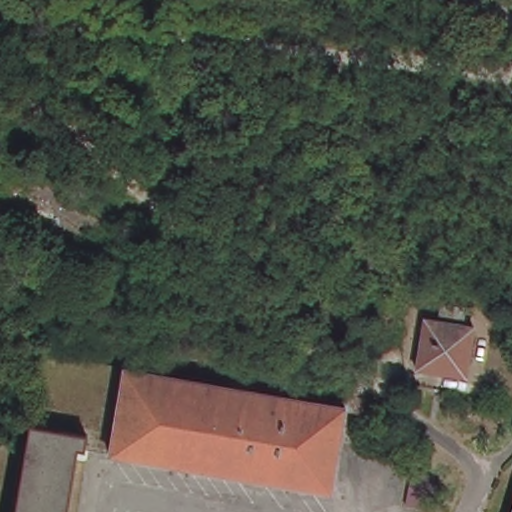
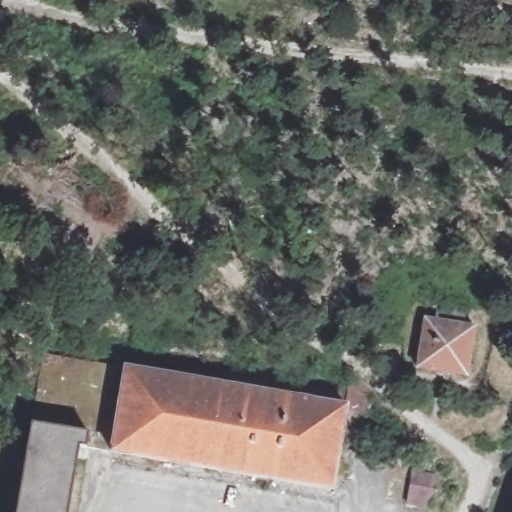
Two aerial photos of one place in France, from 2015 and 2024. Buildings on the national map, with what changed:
unchanged [(481,321),(474,358),(473,370),(467,370),(457,368),(453,367),(443,365),(439,365),(429,363),(423,362),(426,350),(432,312),(481,321)]
unchanged [(128,361),(354,400),(336,490),(113,449),(128,361)]
unchanged [(34,416),(84,427),(69,512),(17,512),(34,416)]

